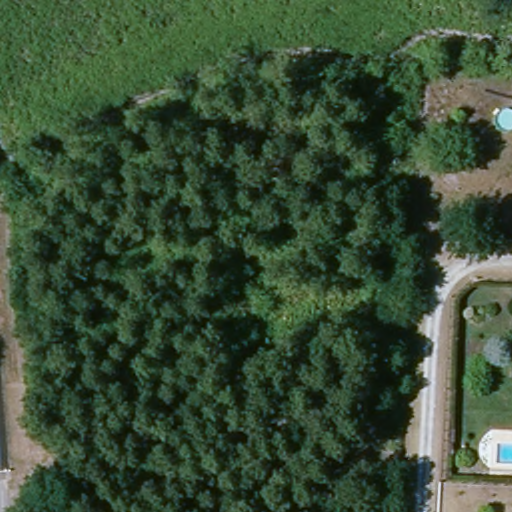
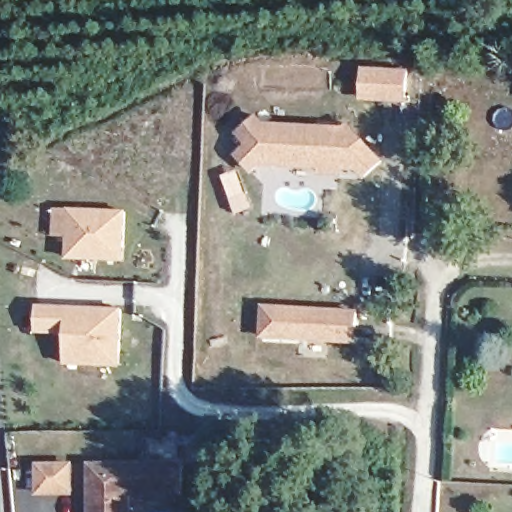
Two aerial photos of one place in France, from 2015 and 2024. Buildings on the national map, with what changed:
new [(408,70),(406,105),(361,101),(363,68),(408,70)]
new [(265,123),(345,128),(352,122),(384,160),(365,179),(358,172),(335,176),(319,177),(320,168),(259,166),(251,175),(235,156),(246,145),(236,135),(259,115),(265,123)]
new [(125,263),(65,261),(66,237),(53,237),(54,209),(126,210),(125,263)]
new [(121,368),(65,366),(66,334),(35,335),(37,305),(123,309),(121,368)]
new [(359,312),(359,344),(261,340),(263,305),(359,312)]
new [(95,465),(187,464),(187,493),(135,493),(134,511),(135,512),(96,512),(95,465)]
new [(76,465),(76,493),(44,493),(43,465),(76,465)]

